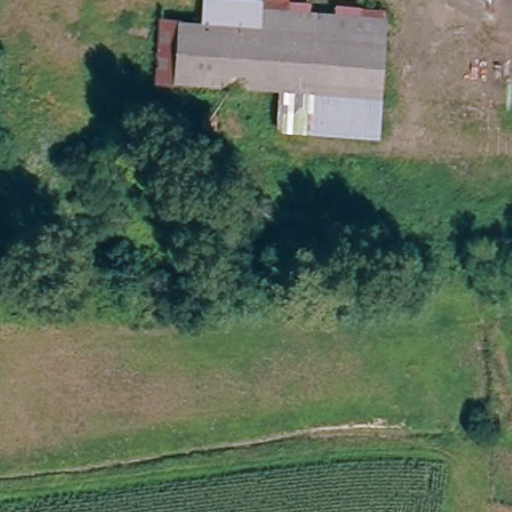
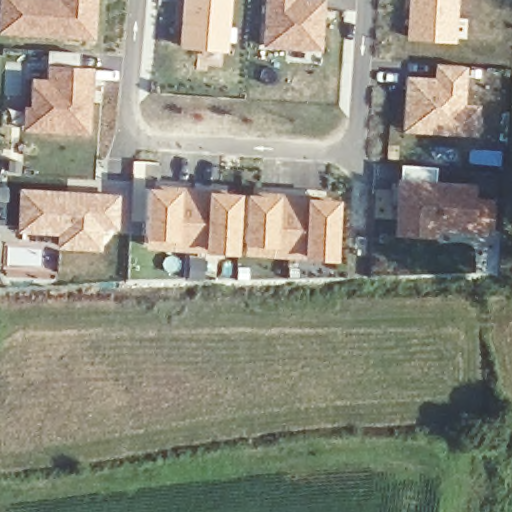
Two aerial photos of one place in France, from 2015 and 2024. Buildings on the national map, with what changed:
new [(95,0),(92,40),(0,33),(0,0),(95,0)]
new [(229,0),(228,36),(232,36),(231,42),(225,41),(224,52),(177,48),(181,0),(229,0)]
new [(321,0),(319,53),(260,47),(263,0),(321,0)]
new [(455,0),(451,43),(403,39),(406,0),(455,0)]
new [(78,53),(78,70),(90,71),(88,131),(37,130),(38,110),(31,109),(32,81),(49,81),(51,51),(78,53)]
new [(403,75),(431,76),(433,62),(465,65),(463,101),(480,103),(478,137),(399,131),(403,75)]
new [(394,198),(399,164),(435,166),(434,180),(476,184),(476,196),(493,197),(489,239),(445,236),(445,238),(392,235),(394,198)]
new [(143,187),(174,187),(335,199),(330,261),(192,249),(173,249),(173,241),(141,239),(143,187)]
new [(18,188),(118,194),(114,232),(100,232),(97,252),(54,248),(55,236),(15,233),(18,188)]

